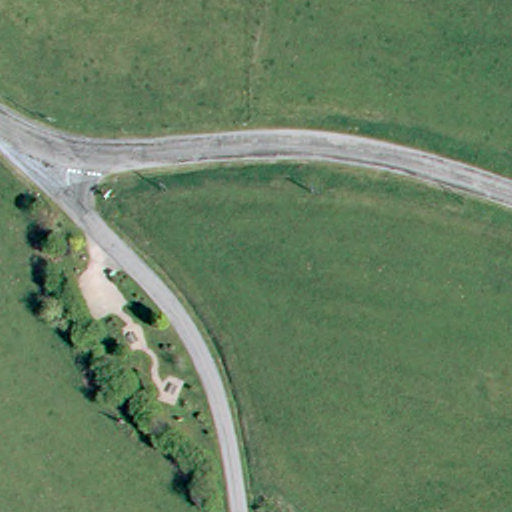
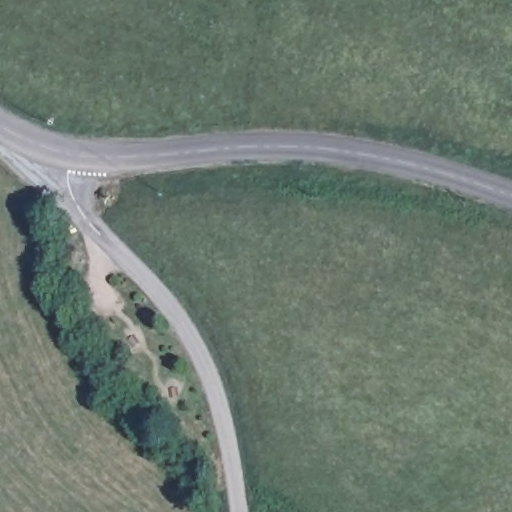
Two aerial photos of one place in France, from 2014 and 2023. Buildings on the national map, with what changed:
unchanged [(95,261),(82,272),(70,260),(82,248),(95,261)]

